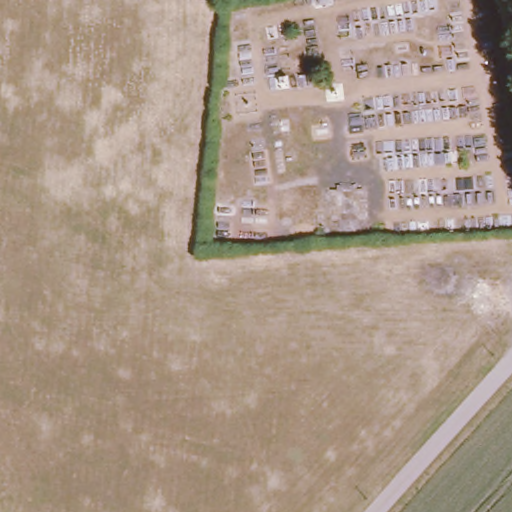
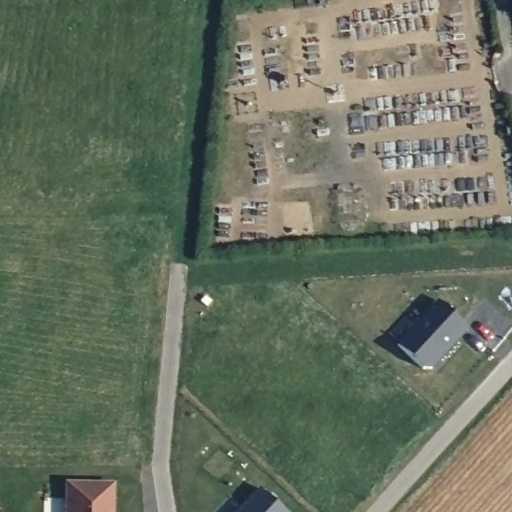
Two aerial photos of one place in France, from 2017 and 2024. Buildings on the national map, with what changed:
new [(439,301),(468,328),(433,369),(425,369),(399,346),(439,301)]
new [(111,512),(66,512),(66,482),(111,481),(111,512)]
new [(289,512),(234,512),(259,484),(289,512)]

